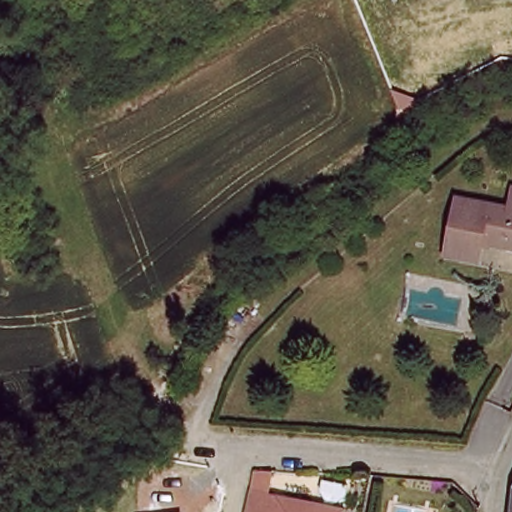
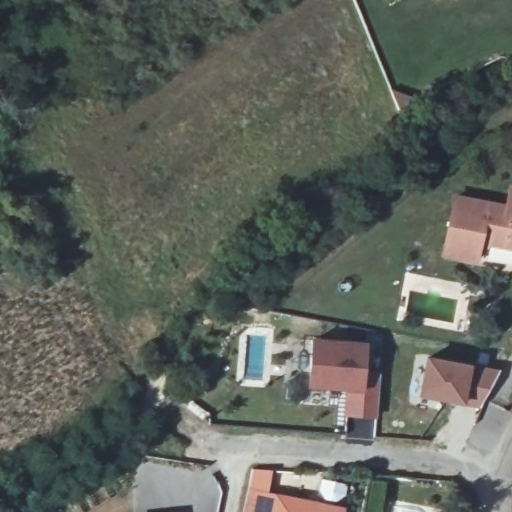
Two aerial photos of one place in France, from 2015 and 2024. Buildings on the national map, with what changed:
unchanged [(507,203),(512,180),(512,248),(482,242),(478,261),(442,254),(455,195),(507,203)]
new [(302,343),(354,346),(352,373),(370,374),(367,416),(337,415),(339,389),(300,387),(302,343)]
new [(425,357),(472,365),(501,370),(480,408),(465,405),(418,396),(425,357)]
unchanged [(512,493),(512,512),(509,512),(512,493)]
unchanged [(252,494),(340,512),(250,512),(252,494)]

